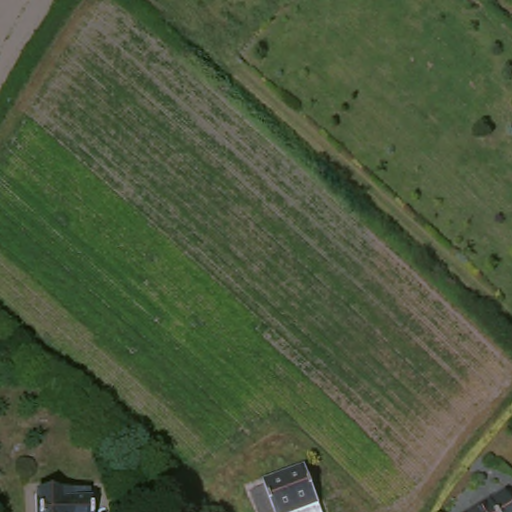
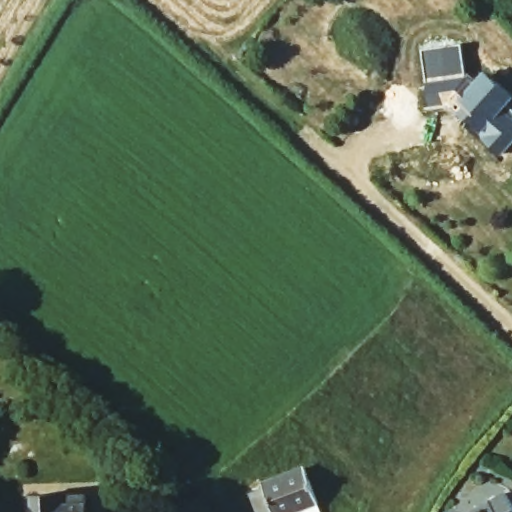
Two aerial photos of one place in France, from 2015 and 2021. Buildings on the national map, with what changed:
new [(473,85),(481,77),(484,73),(494,82),(511,97),(504,104),(512,112),(512,120),(511,120),(512,121),(512,140),(498,155),(481,140),(484,137),(446,103),(428,106),(420,50),(459,45),(464,78),(473,85)]
unchanged [(324,502),(297,512),(264,512),(254,488),(265,482),(264,478),(308,460),(324,502)]
unchanged [(86,512),(34,512),(32,496),(84,491),(86,512)]
unchanged [(511,512),(468,512),(497,492),(511,512)]

